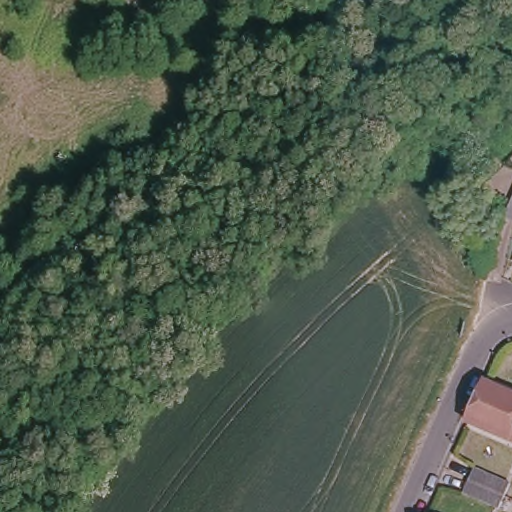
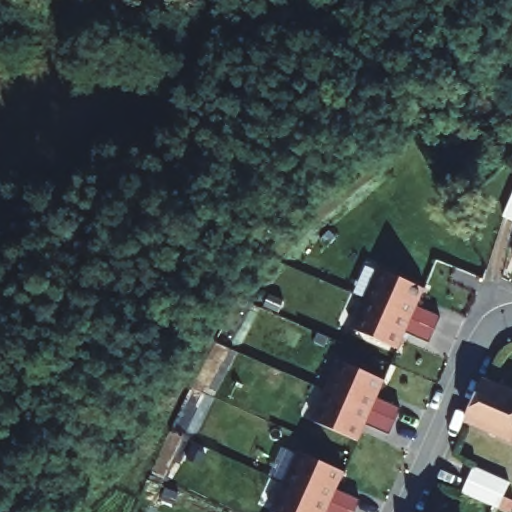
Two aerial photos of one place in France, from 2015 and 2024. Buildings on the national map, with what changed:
unchanged [(512,203),(512,220),(506,217),(512,203)]
new [(425,287),(418,305),(439,314),(429,340),(407,331),(398,349),(351,328),(378,267),(425,287)]
new [(384,380),(378,397),(400,407),(389,433),(366,422),(357,441),(311,421),(337,358),(384,380)]
unchanged [(483,377),(484,378),(512,391),(512,415),(474,398),(483,377)]
unchanged [(465,418),(474,398),(512,415),(512,439),(466,419),(465,418)]
new [(346,472),(339,487),(361,498),(355,512),(274,512),(269,510),(296,451),(346,472)]
unchanged [(462,489),(467,477),(472,466),(508,482),(503,492),(497,506),(462,489)]

